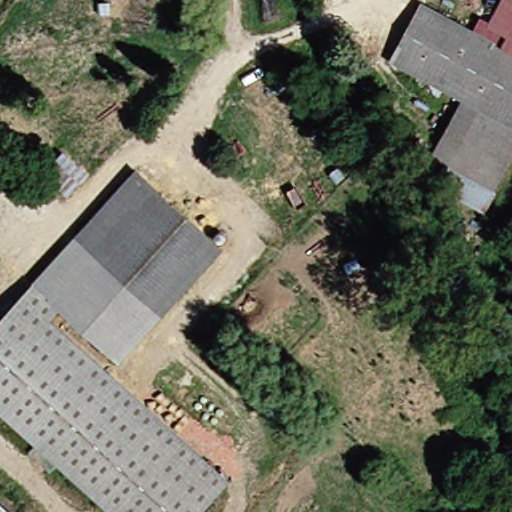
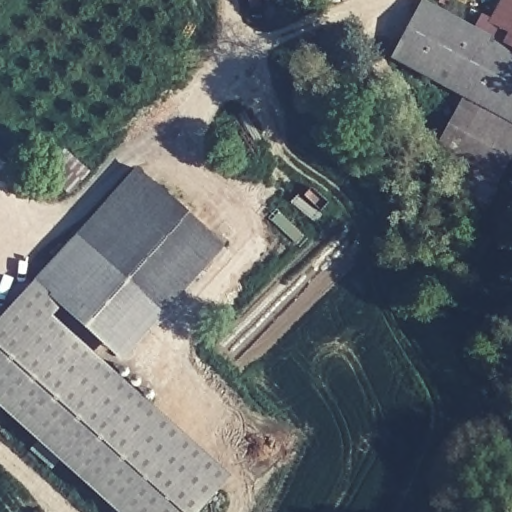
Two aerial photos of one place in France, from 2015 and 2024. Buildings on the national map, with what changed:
unchanged [(386,61),(395,45),(420,2),(466,32),(472,22),(483,28),(501,0),(512,0),(512,141),(511,143),(476,120),(386,61)]
unchanged [(442,176),(476,120),(511,143),(477,196),(442,176)]
unchanged [(41,173),(62,149),(99,185),(77,207),(41,173)]
unchanged [(73,237),(135,170),(221,252),(163,320),(73,237)]
unchanged [(122,367),(31,284),(73,237),(163,320),(122,367)]
unchanged [(122,367),(237,475),(202,512),(108,512),(0,413),(0,316),(31,284),(122,367)]

